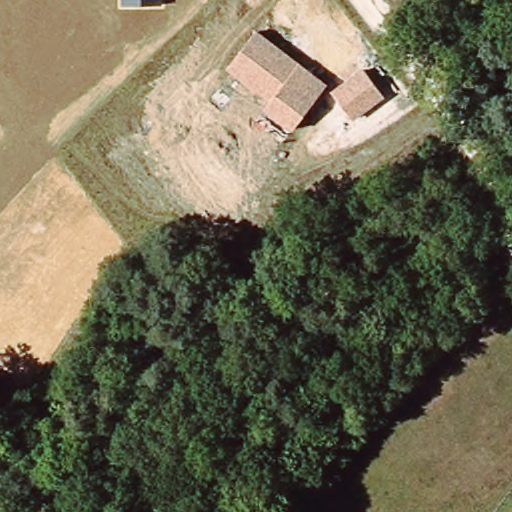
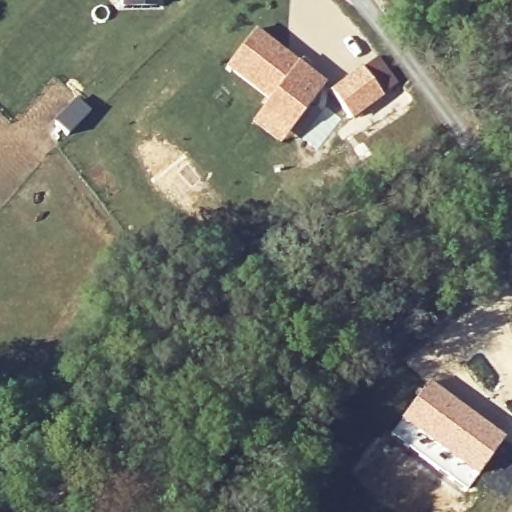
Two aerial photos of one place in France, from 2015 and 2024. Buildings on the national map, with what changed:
unchanged [(164,5),(120,6),(120,0),(163,0),(164,5)]
unchanged [(329,83),(291,133),(261,110),(268,100),(226,69),(255,27),(329,83)]
unchanged [(385,96),(351,119),(330,90),(363,66),(385,96)]
new [(427,381),(505,438),(467,491),(390,432),(427,381)]

